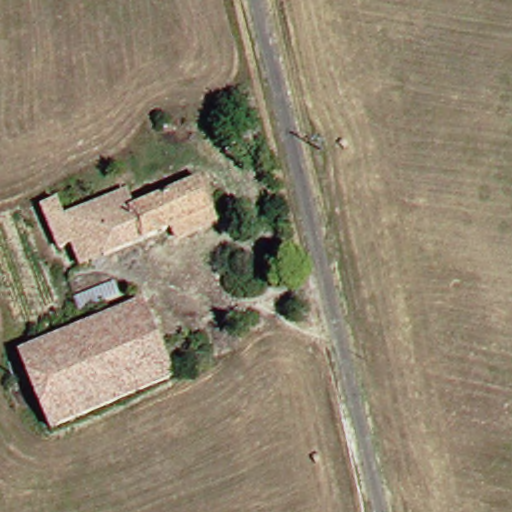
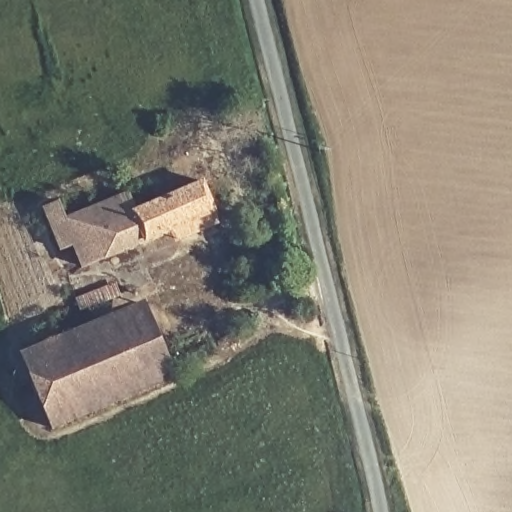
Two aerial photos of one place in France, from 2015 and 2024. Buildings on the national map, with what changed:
unchanged [(56,220),(61,234),(124,211),(131,227),(203,199),(217,229),(84,284),(74,262),(55,269),(36,227),(39,226),(56,220)]
unchanged [(139,394),(106,319),(134,308),(166,386),(139,394)]
unchanged [(8,358),(106,319),(139,394),(44,434),(8,358)]

